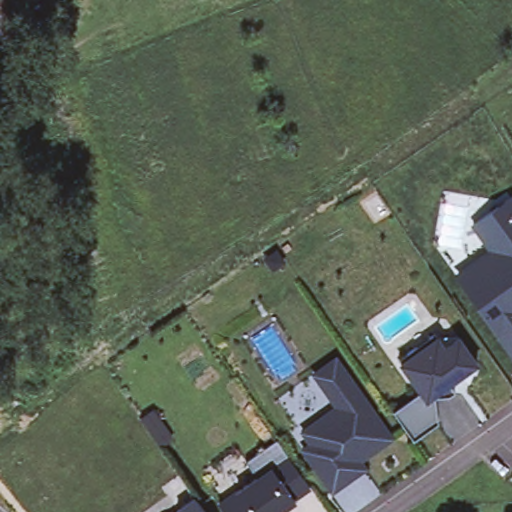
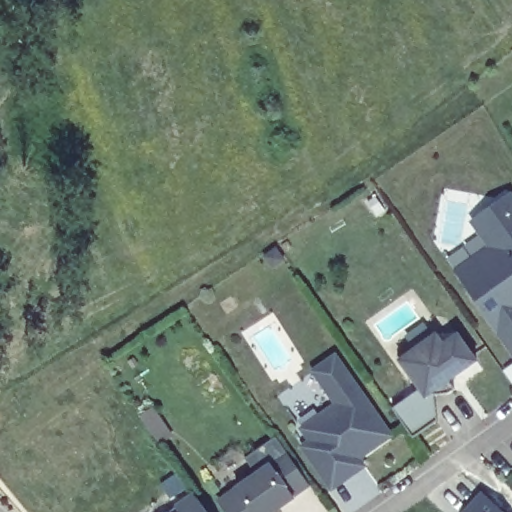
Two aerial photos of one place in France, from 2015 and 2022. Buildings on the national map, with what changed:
unchanged [(487,247),(470,223),(512,194),(512,360),(453,271),(487,247)]
unchanged [(436,335),(457,335),(475,360),(469,382),(468,383),(461,372),(448,382),(454,390),(448,394),(433,396),(437,421),(413,438),(395,412),(392,408),(420,390),(397,358),(434,332),(436,335)]
unchanged [(357,467),(332,483),(302,442),(310,436),(302,423),(336,400),(312,367),(335,351),(392,431),(359,453),(365,461),(357,467)]
unchanged [(271,465),(257,475),(245,458),(275,437),(309,484),(292,495),(271,465)]
unchanged [(219,502),(257,475),(271,465),(292,495),(294,497),(273,512),(226,512),(219,502)]
new [(482,492),(505,512),(462,512),(482,492)]
unchanged [(177,507),(195,495),(207,512),(170,512),(177,507)]

